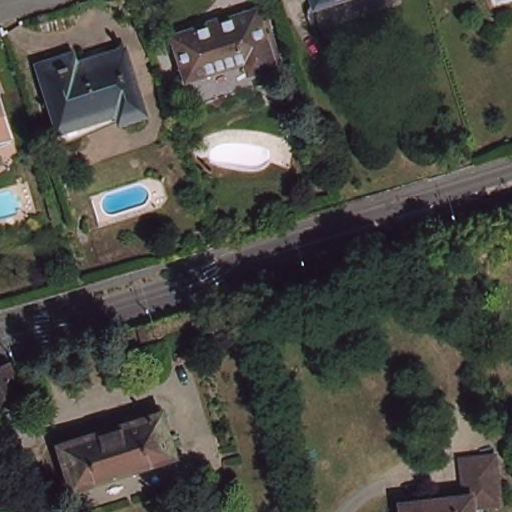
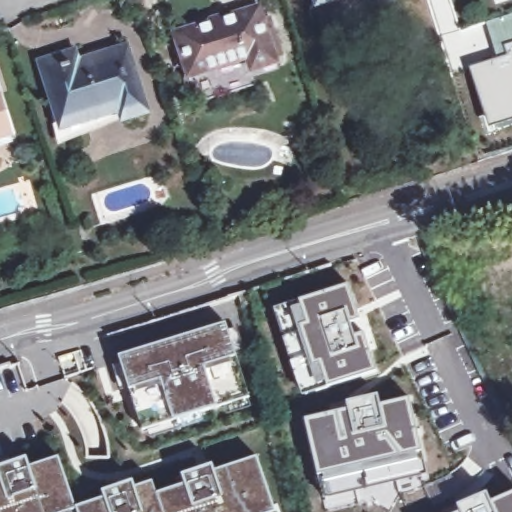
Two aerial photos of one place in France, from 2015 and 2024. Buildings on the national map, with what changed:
unchanged [(317,1),(317,0),(322,0),(317,1)]
unchanged [(238,65),(235,53),(177,71),(163,28),(247,2),(264,57),(238,65)]
new [(484,21),(512,13),(512,122),(489,129),(468,66),(495,56),(484,21)]
unchanged [(122,118),(120,108),(61,126),(41,62),(77,51),(80,61),(126,46),(147,111),(122,118)]
unchanged [(1,88),(0,89),(0,87),(1,88)]
unchanged [(11,135),(0,139),(0,99),(11,135)]
new [(350,282),(379,371),(344,384),(301,397),(273,307),(350,282)]
new [(144,428),(129,387),(120,357),(225,324),(236,358),(249,397),(144,428)]
demolished [(12,372),(23,401),(0,409),(0,373),(10,369),(12,372)]
new [(320,484),(304,418),(346,407),(345,401),(379,393),(382,403),(411,396),(428,474),(368,490),(325,501),(320,484)]
demolished [(128,471),(82,486),(68,440),(166,409),(181,455),(149,465),(128,471)]
demolished [(471,494),(470,460),(501,457),(504,502),(477,505),(477,512),(406,512),(406,501),(471,494)]
new [(27,458),(30,468),(58,459),(77,509),(106,499),(104,492),(132,482),(136,490),(153,483),(158,495),(187,486),(184,476),(212,466),(214,473),(257,458),(274,512),(0,512),(0,475),(0,468),(27,458)]
new [(455,505),(487,490),(492,500),(512,491),(512,512),(456,512),(458,511),(455,505)]

